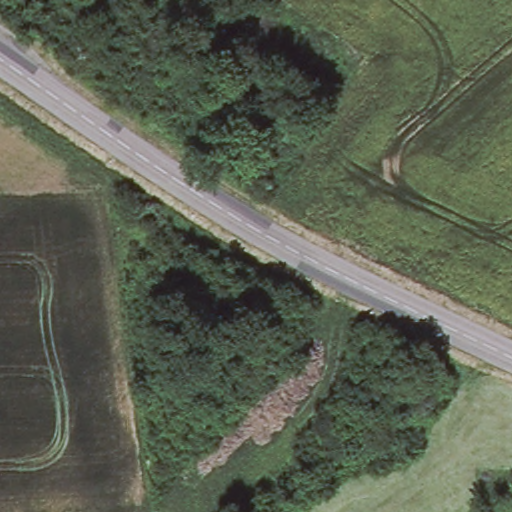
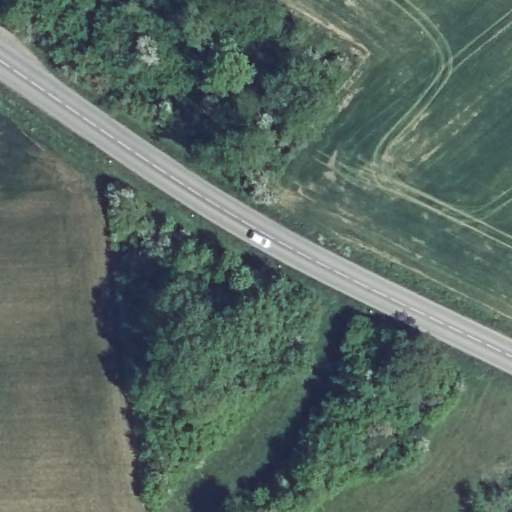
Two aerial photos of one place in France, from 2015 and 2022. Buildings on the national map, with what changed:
unchanged [(217,124),(192,133),(169,48),(199,38),(217,124)]

